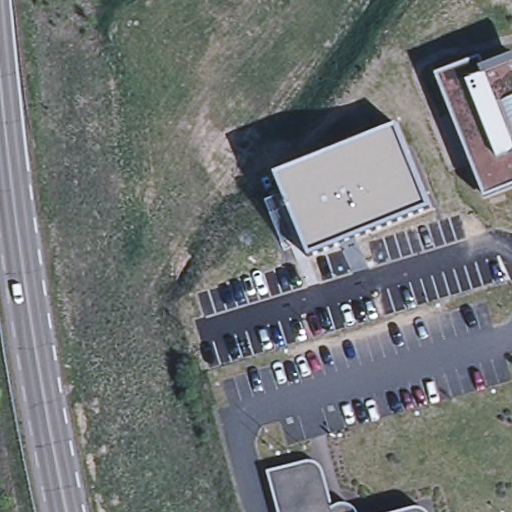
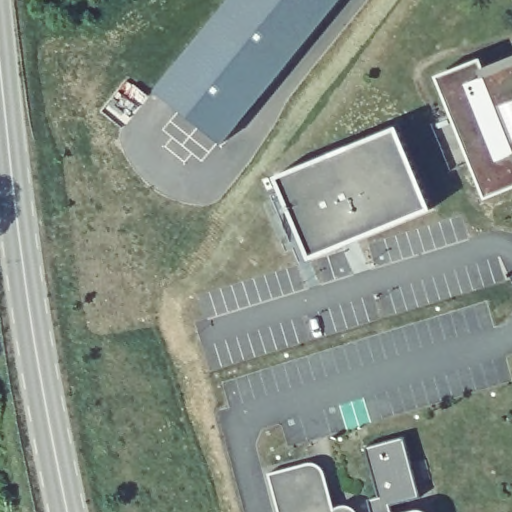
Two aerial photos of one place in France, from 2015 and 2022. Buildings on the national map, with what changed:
new [(335,0),(220,143),(155,90),(229,0),(335,0)]
unchanged [(437,75),(478,59),(484,74),(512,63),(512,184),(484,195),(437,75)]
unchanged [(431,207),(306,257),(298,236),(282,243),(267,203),(282,197),(275,174),(396,124),(431,207)]
unchanged [(305,466),(312,468),(317,470),(320,474),(330,512),(274,512),(265,478),(305,466)]
unchanged [(335,510),(340,510),(346,510),(349,512),(333,512),(335,510)]

